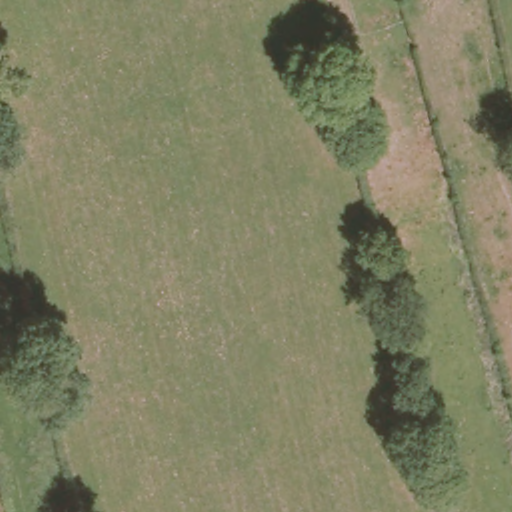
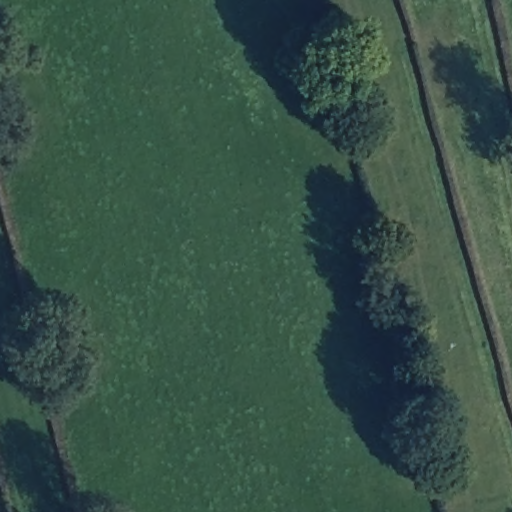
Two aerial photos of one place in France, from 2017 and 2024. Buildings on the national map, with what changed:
[]

